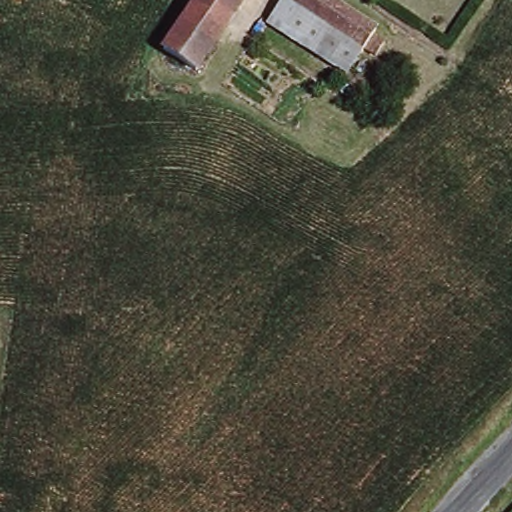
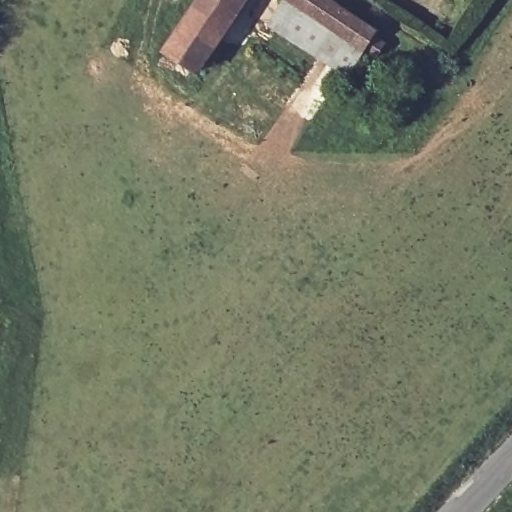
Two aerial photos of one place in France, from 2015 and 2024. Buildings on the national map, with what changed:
unchanged [(177,38),(200,0),(242,0),(205,56),(177,38)]
unchanged [(335,0),(379,28),(375,34),(383,41),(374,54),(361,49),(347,74),(267,23),(282,0),(335,0)]

